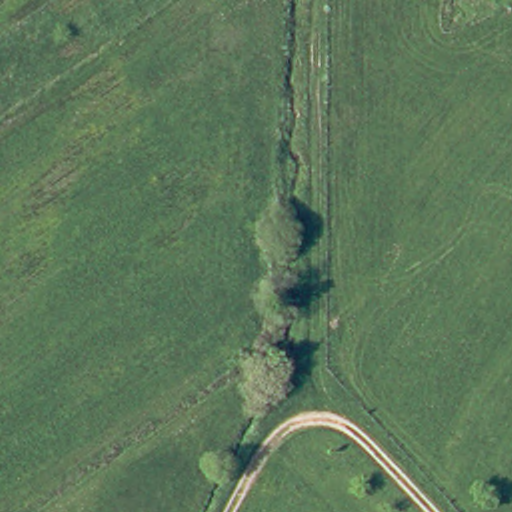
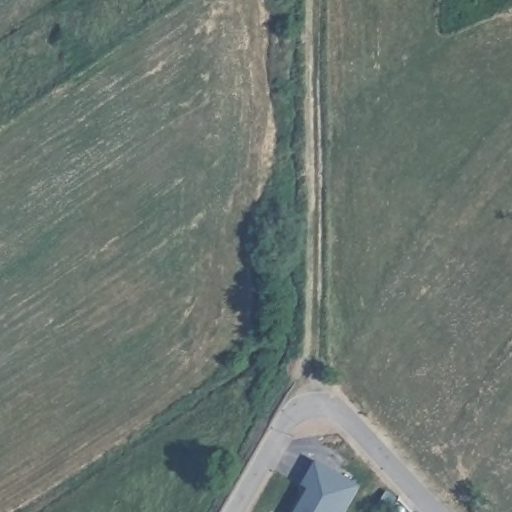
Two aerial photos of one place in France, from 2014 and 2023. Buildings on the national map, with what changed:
new [(359,483),(343,512),(293,512),(308,485),(303,483),(315,459),(359,483)]

